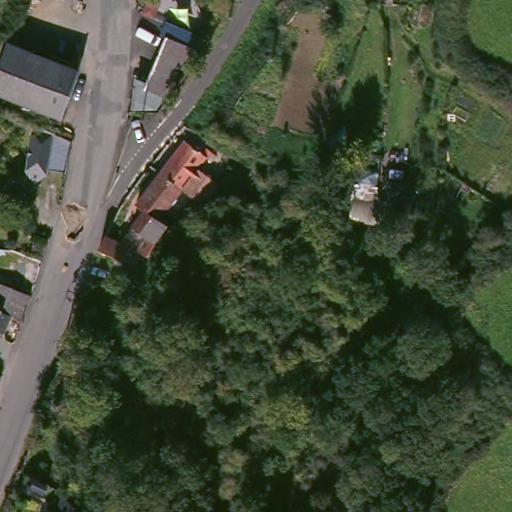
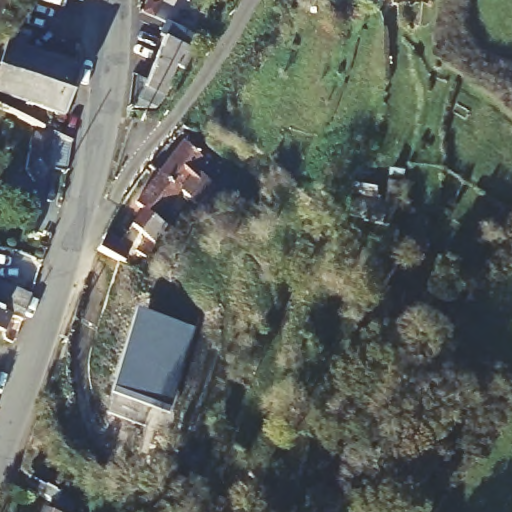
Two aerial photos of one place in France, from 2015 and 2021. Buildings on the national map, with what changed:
unchanged [(179,23),(198,32),(172,96),(153,88),(179,23)]
unchanged [(68,114),(0,89),(0,79),(16,39),(86,66),(85,69),(68,114)]
unchanged [(54,171),(53,175),(43,186),(31,173),(36,143),(44,144),(47,127),(60,133),(80,142),(75,176),(54,171)]
unchanged [(167,169),(192,135),(210,148),(213,143),(224,151),(219,158),(213,154),(200,171),(219,185),(208,199),(190,186),(167,169)]
unchanged [(161,245),(148,235),(152,230),(149,227),(160,213),(144,200),(163,175),(153,167),(158,161),(167,169),(190,186),(165,216),(175,223),(166,236),(161,245)]
unchanged [(114,230),(126,237),(130,229),(144,238),(138,248),(136,247),(130,257),(106,246),(114,230)]
unchanged [(0,301),(0,283),(3,276),(46,293),(36,318),(25,313),(0,301)]
unchanged [(18,327),(0,323),(0,301),(25,313),(18,327)]
new [(141,312),(146,314),(121,393),(152,404),(146,420),(110,409),(141,312)]
new [(171,410),(165,408),(152,404),(121,393),(146,314),(191,328),(196,330),(171,410)]
unchanged [(34,473),(57,482),(51,497),(29,486),(34,473)]
unchanged [(59,506),(72,512),(56,512),(59,506)]

